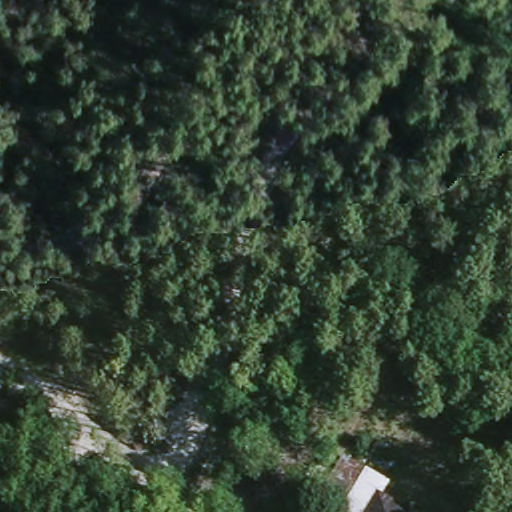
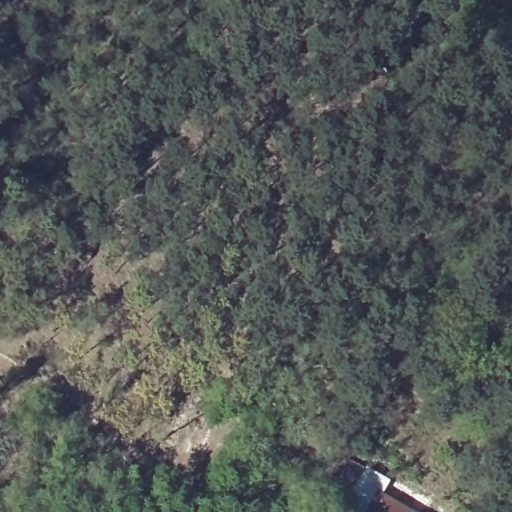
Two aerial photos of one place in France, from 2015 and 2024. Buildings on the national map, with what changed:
unchanged [(346,486),(361,461),(373,469),(396,482),(388,495),(415,512),(349,512),(360,493),(346,486)]

